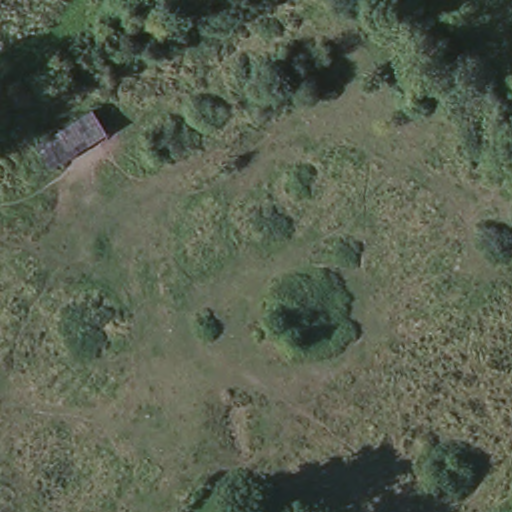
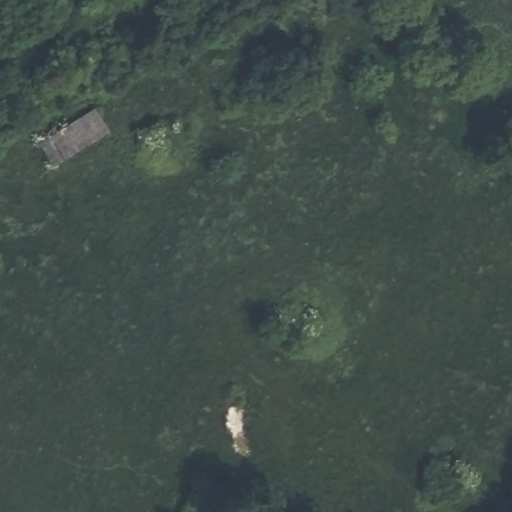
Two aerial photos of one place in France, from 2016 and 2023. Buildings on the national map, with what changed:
unchanged [(102,124),(56,162),(40,142),(86,105),(102,124)]

